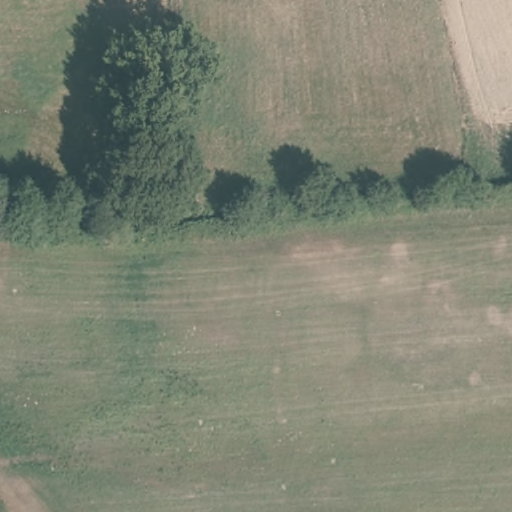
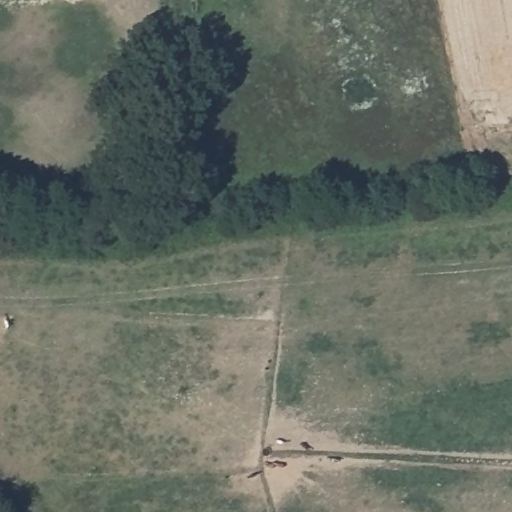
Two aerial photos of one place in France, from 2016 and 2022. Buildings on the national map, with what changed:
[]

